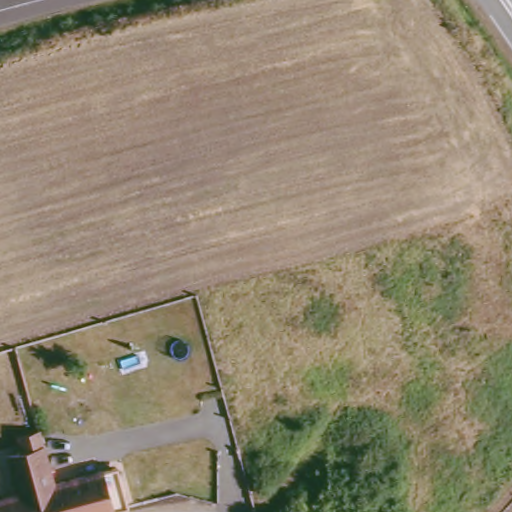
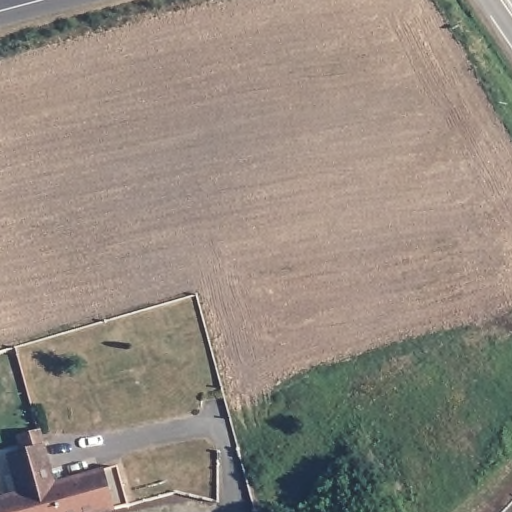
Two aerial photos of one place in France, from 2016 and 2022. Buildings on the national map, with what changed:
unchanged [(13,475),(8,459),(20,456),(15,438),(36,433),(41,451),(50,486),(28,492),(22,473),(13,475)]
unchanged [(28,492),(50,486),(112,470),(123,508),(109,512),(0,512),(0,500),(28,492)]

